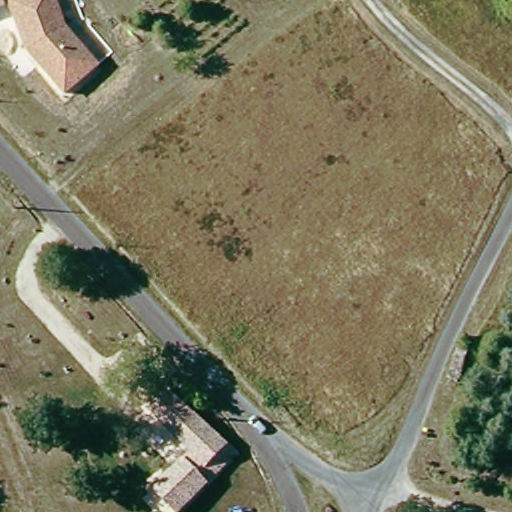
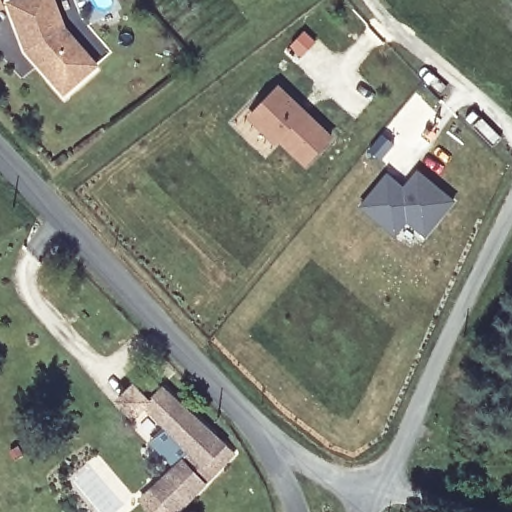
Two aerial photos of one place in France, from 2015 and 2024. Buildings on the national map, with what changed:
new [(0,5),(0,0),(2,0),(4,4),(0,5)]
unchanged [(25,50),(7,1),(11,0),(57,0),(67,30),(100,65),(65,95),(25,50)]
new [(277,85),(297,102),(295,106),(304,114),(307,111),(331,132),(307,159),(281,136),(277,139),(251,115),(277,85)]
new [(387,177),(404,190),(417,173),(453,200),(427,236),(408,221),(397,235),(362,209),(387,177)]
unchanged [(147,409),(165,390),(235,457),(182,512),(173,512),(151,488),(187,451),(147,409)]
demolished [(83,512),(82,512),(82,511),(83,512)]

